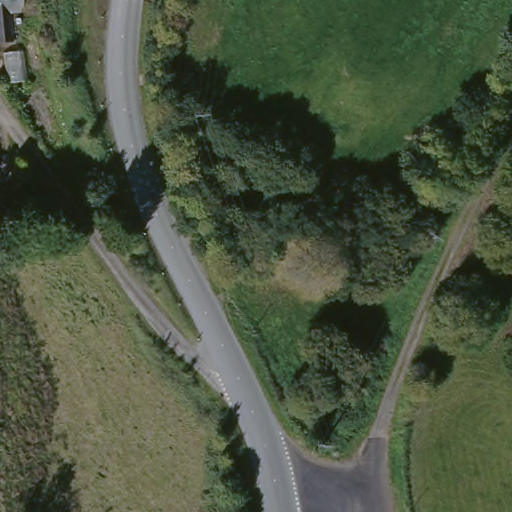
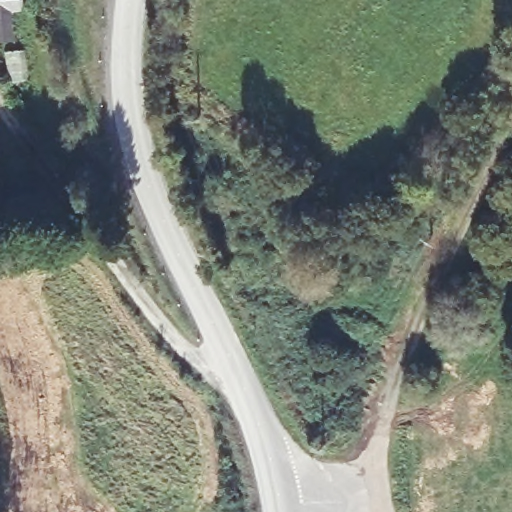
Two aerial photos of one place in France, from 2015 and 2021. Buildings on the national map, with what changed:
unchanged [(11,11),(14,44),(0,43),(0,0),(25,0),(24,10),(11,11)]

